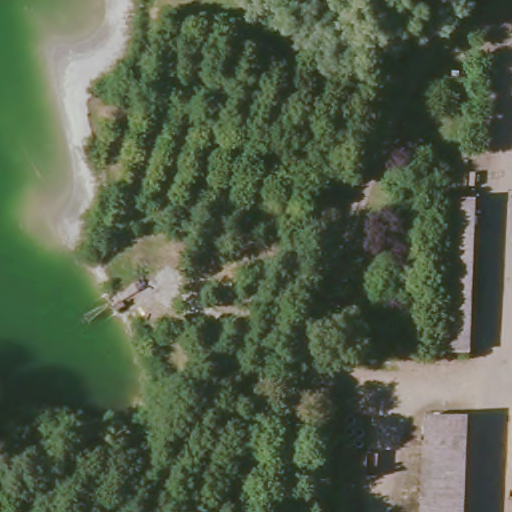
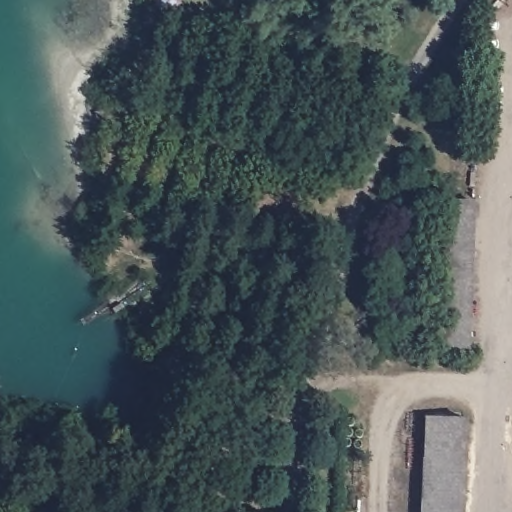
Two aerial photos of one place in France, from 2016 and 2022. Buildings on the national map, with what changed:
unchanged [(451,206),(480,207),(475,354),(445,353),(451,206)]
unchanged [(470,420),(468,512),(426,512),(430,420),(470,420)]

